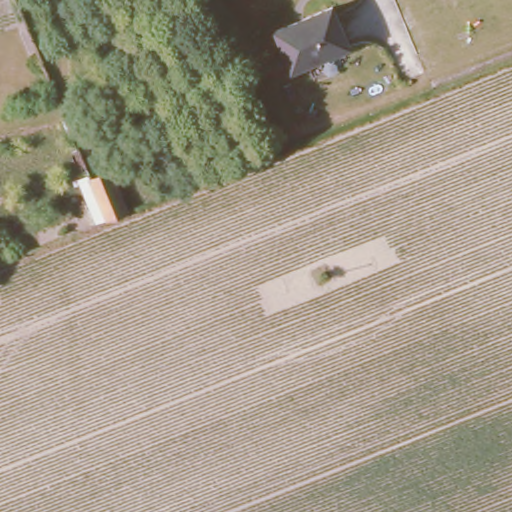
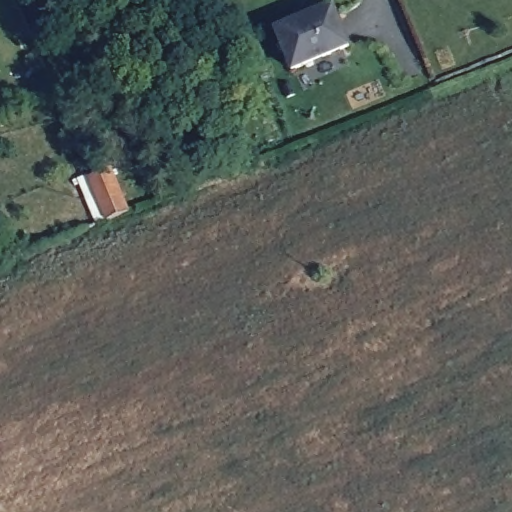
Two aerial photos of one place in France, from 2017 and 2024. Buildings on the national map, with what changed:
unchanged [(351,46),(290,70),(271,26),(331,1),(351,46)]
unchanged [(110,219),(105,205),(95,179),(96,177),(115,170),(126,196),(132,210),(110,219)]

